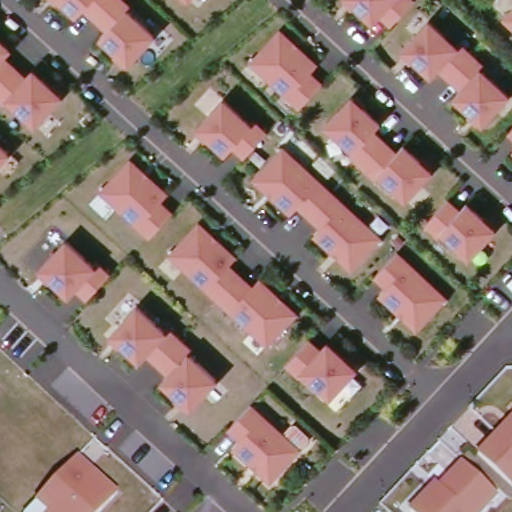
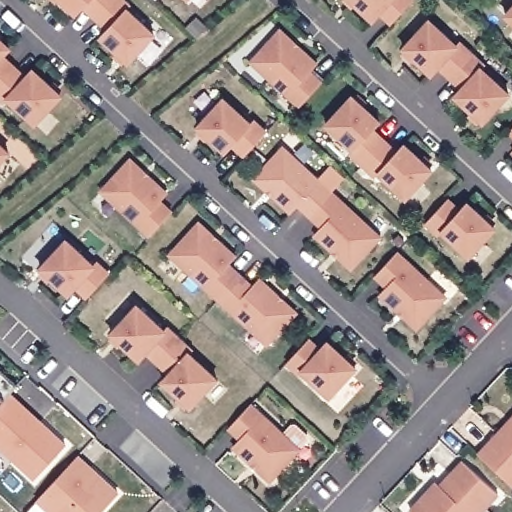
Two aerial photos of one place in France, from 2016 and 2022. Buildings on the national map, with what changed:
unchanged [(96,23),(95,23),(84,12),(77,19),(56,0),(117,0),(96,23)]
unchanged [(117,0),(119,0),(130,10),(127,14),(155,39),(128,67),(100,41),(107,33),(96,23),(117,0)]
unchanged [(391,23),(380,12),(372,20),(351,0),(413,0),(391,23)]
unchanged [(512,12),(512,26),(505,20),(512,12)]
unchanged [(482,126),(455,101),(462,93),(450,82),(438,71),(431,79),(403,53),(429,25),(456,50),(459,47),(472,59),(484,70),(481,73),(508,98),(482,126)]
unchanged [(251,61),(280,30),(317,64),(310,71),(322,82),(300,106),(251,61)]
unchanged [(3,55),(15,66),(0,82),(0,38),(10,47),(3,55)]
unchanged [(33,69),(61,95),(35,123),(8,98),(5,101),(0,96),(0,82),(15,66),(26,77),(33,69)]
unchanged [(381,146),(364,165),(351,154),(354,150),(326,126),(351,97),(380,123),(373,131),(385,141),(381,146)]
unchanged [(253,145),(245,155),(233,144),(225,152),(197,126),(223,98),(250,123),(253,120),(266,132),(253,145)]
unchanged [(510,132),(512,130),(512,134),(510,132)]
unchanged [(381,146),(385,141),(397,152),(405,144),(433,169),(408,198),(380,173),(377,177),(364,165),(381,146)]
unchanged [(298,205),(291,213),(254,179),(283,147),(331,192),(330,195),(310,216),(298,205)]
unchanged [(0,167),(0,149),(9,157),(0,167)]
unchanged [(150,235),(101,190),(130,159),(167,193),(160,201),(172,212),(150,235)]
unchanged [(330,195),(331,192),(380,237),(351,268),(315,234),(321,226),(310,216),(330,195)]
unchanged [(448,199),(460,209),(467,202),(495,227),(470,256),(442,230),(440,234),(426,222),(448,199)]
unchanged [(220,302),(219,304),(170,259),(199,228),(236,262),(229,269),(240,280),(220,302)]
unchanged [(87,297),(75,286),(68,294),(40,268),(66,240),(93,265),(96,261),(109,273),(87,297)]
unchanged [(396,254),(398,253),(445,299),(416,329),(380,295),(387,287),(376,276),(396,254)]
unchanged [(267,348),(219,304),(220,302),(240,280),(252,291),(260,283),(296,317),(267,348)]
unchanged [(177,347),(173,351),(158,367),(146,356),(140,364),(111,338),(137,310),(165,335),(167,332),(180,343),(177,347)]
unchanged [(309,338),(321,349),(328,342),(356,368),(330,395),(303,370),(300,374),(287,362),(309,338)]
unchanged [(173,351),(177,347),(180,343),(192,355),(190,358),(216,383),(191,411),(163,386),(170,378),(158,367),(173,351)]
new [(11,392),(67,443),(33,479),(0,449),(0,370),(16,385),(11,392)]
unchanged [(250,409),(299,454),(270,485),(233,451),(240,443),(229,432),(250,409)]
unchanged [(493,467),(479,454),(512,418),(512,485),(493,467)]
unchanged [(50,512),(39,503),(80,457),(120,496),(108,512),(50,512)]
unchanged [(435,490),(463,461),(498,494),(481,512),(412,512),(410,510),(432,487),(435,490)]

